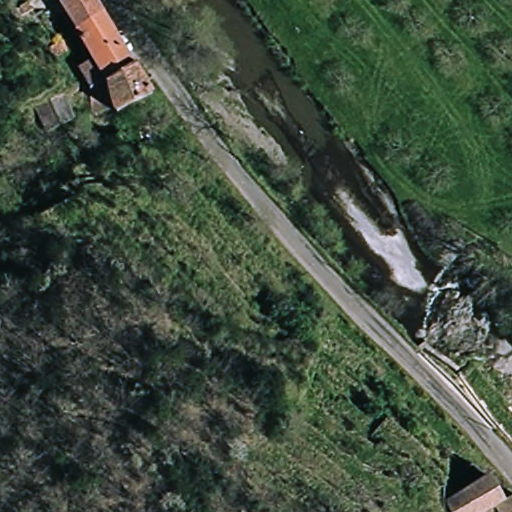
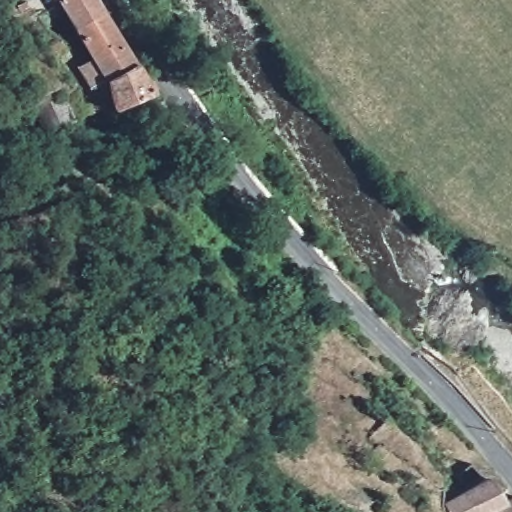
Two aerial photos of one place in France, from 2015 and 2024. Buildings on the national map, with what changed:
unchanged [(94,105),(80,76),(94,67),(70,18),(59,24),(47,0),(97,0),(140,70),(94,105)]
unchanged [(64,43),(71,62),(63,67),(54,49),(64,43)]
unchanged [(89,107),(94,105),(140,70),(146,65),(157,83),(151,90),(156,100),(122,116),(118,111),(98,123),(89,107)]
unchanged [(69,80),(72,79),(76,88),(64,96),(70,111),(56,121),(41,95),(69,80)]
unchanged [(488,474),(466,488),(456,477),(475,459),(488,474)]
unchanged [(497,508),(491,512),(448,512),(447,508),(468,491),(490,477),(505,504),(512,499),(512,512),(500,512),(497,508)]

